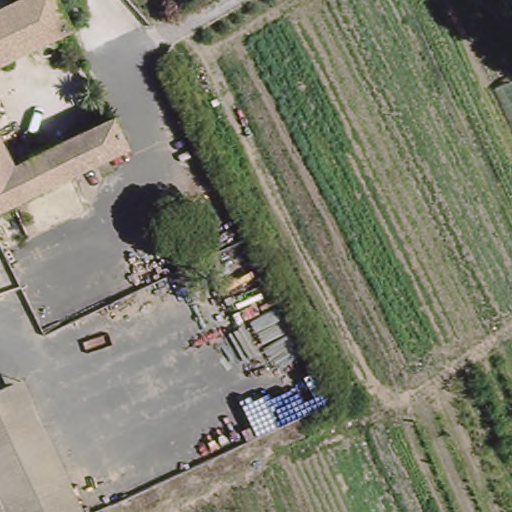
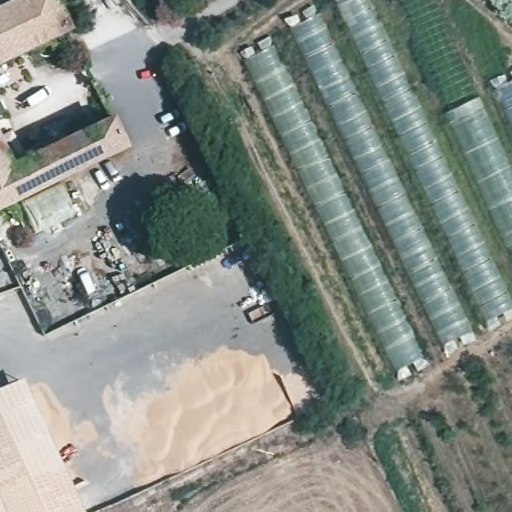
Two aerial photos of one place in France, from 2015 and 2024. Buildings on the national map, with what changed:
unchanged [(64,66),(50,36),(0,61),(0,10),(15,2),(14,0),(51,0),(80,58),(64,66)]
new [(487,322),(335,4),(345,0),(371,0),(512,297),(512,311),(487,322)]
new [(445,345),(290,28),(320,13),(474,332),(445,345)]
new [(424,358),(399,370),(245,58),(272,45),(424,358)]
unchanged [(512,80),(512,120),(497,87),(512,80)]
unchanged [(96,123),(81,91),(92,86),(122,148),(0,207),(0,146),(10,166),(96,123)]
new [(512,162),(512,248),(510,249),(445,113),(482,96),(512,162)]
unchanged [(84,512),(0,512),(0,388),(21,379),(84,512)]
new [(400,433),(434,512),(397,512),(368,446),(400,433)]

